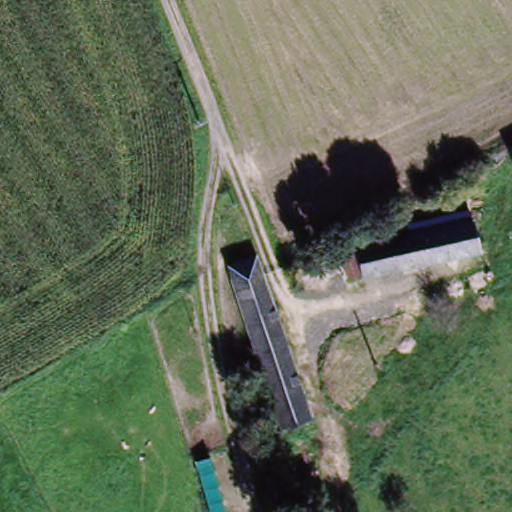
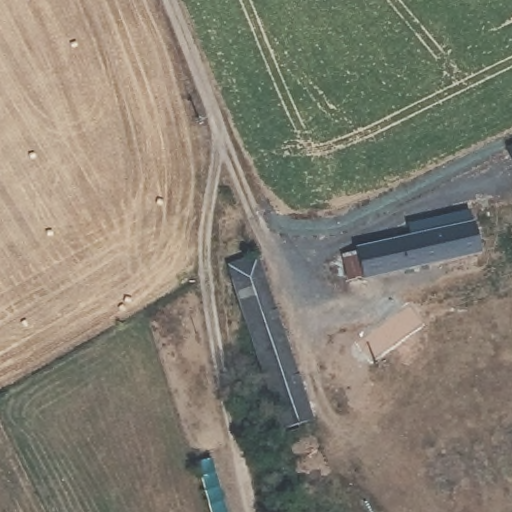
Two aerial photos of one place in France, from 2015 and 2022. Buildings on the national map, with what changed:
unchanged [(342,251),(357,247),(357,243),(410,231),(408,219),(472,206),(472,217),(478,216),(486,253),(347,278),(342,251)]
unchanged [(227,266),(262,255),(318,419),(282,432),(227,266)]

